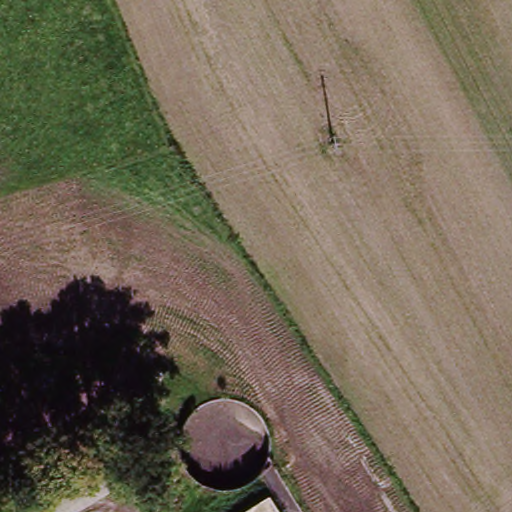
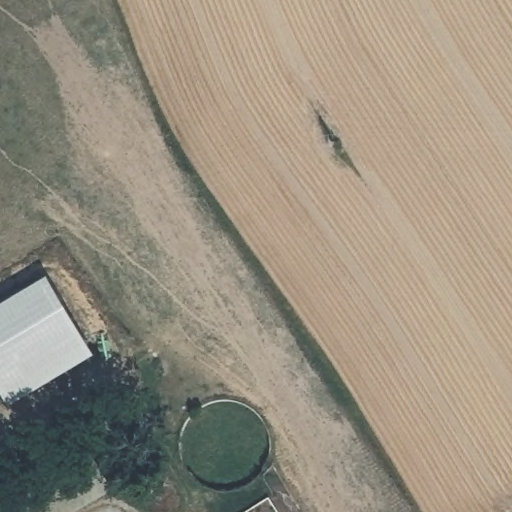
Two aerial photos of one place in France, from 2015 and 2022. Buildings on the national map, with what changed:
new [(93,353),(9,406),(0,399),(0,305),(49,278),(93,353)]
unchanged [(86,455),(106,489),(69,512),(0,512),(0,506),(85,453),(86,455)]

